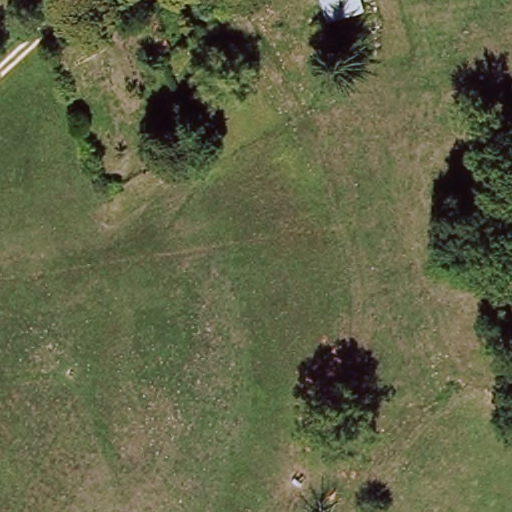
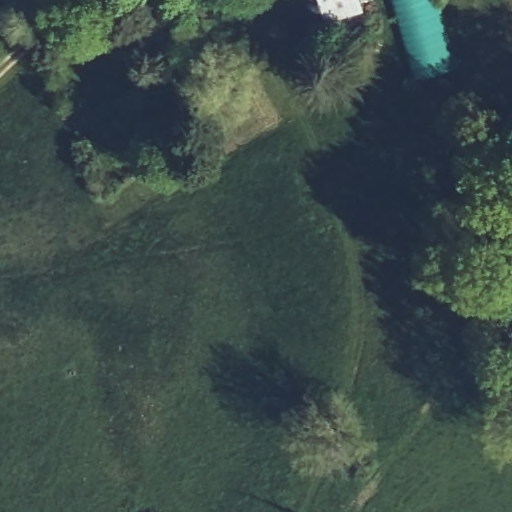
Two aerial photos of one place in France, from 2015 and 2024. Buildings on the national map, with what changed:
unchanged [(363,12),(327,22),(321,0),(360,0),(363,12)]
new [(456,66),(415,77),(395,0),(438,0),(456,66)]

